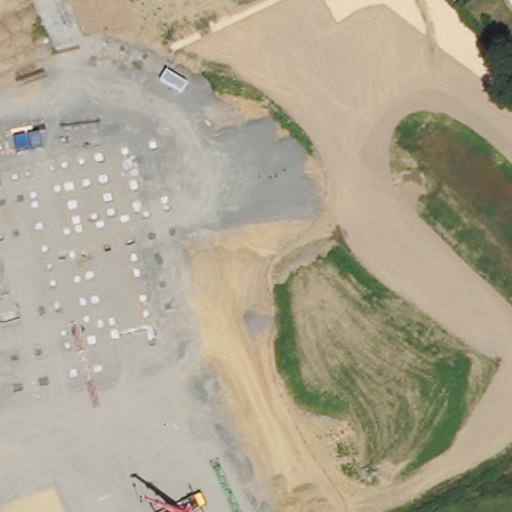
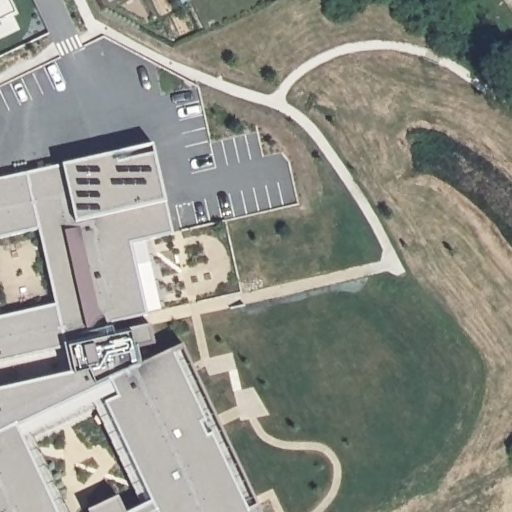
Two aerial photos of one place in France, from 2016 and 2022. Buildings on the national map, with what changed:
new [(18,12),(0,21),(0,0),(12,0),(18,12)]
new [(154,145),(164,200),(174,231),(131,242),(146,315),(121,321),(124,330),(150,325),(154,345),(135,349),(139,364),(173,350),(248,509),(256,505),(260,512),(130,512),(151,502),(103,398),(23,438),(59,512),(0,512),(0,389),(73,374),(67,345),(0,360),(0,316),(56,304),(39,228),(0,236),(0,177),(63,164),(154,145)]
new [(119,497),(126,512),(90,512),(89,510),(119,497)]

